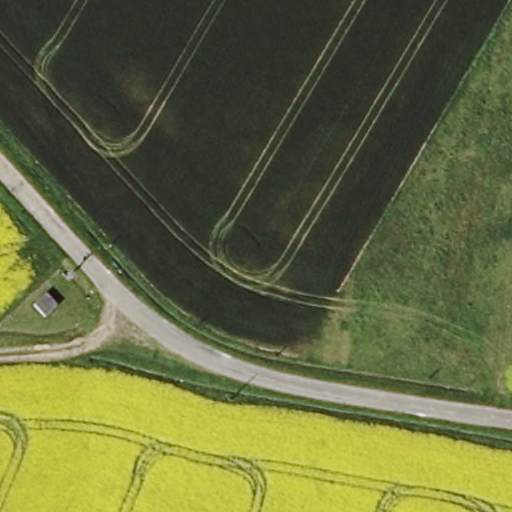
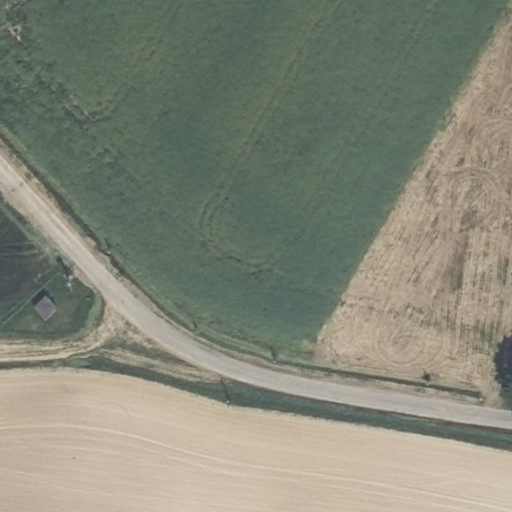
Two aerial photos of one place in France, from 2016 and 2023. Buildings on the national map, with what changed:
unchanged [(36,303),(47,291),(60,302),(48,315),(36,303)]

